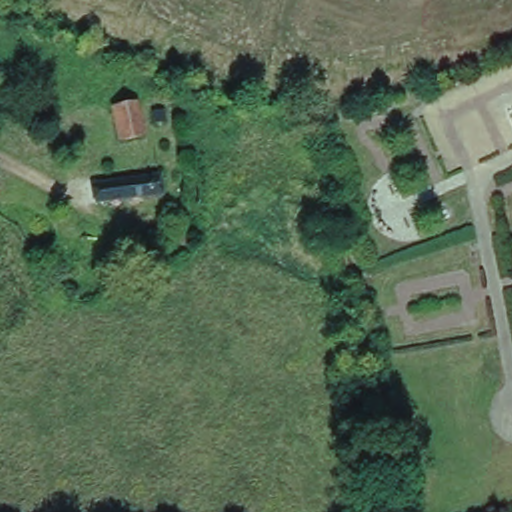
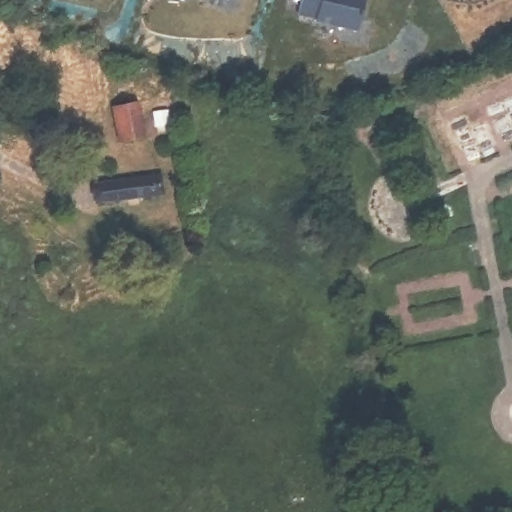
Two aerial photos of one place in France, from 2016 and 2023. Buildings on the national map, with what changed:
new [(188,7),(170,0),(190,0),(188,7)]
new [(233,7),(203,0),(236,0),(233,7)]
new [(353,38),(312,29),(313,25),(296,19),(301,0),(363,0),(353,38)]
unchanged [(144,140),(121,142),(117,108),(140,105),(144,140)]
unchanged [(158,198),(95,203),(93,184),(156,179),(158,198)]

